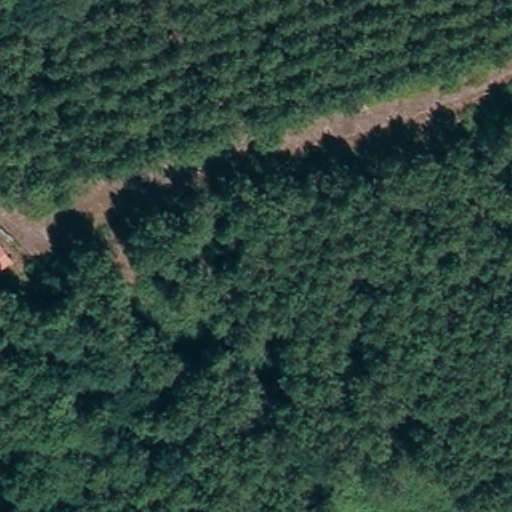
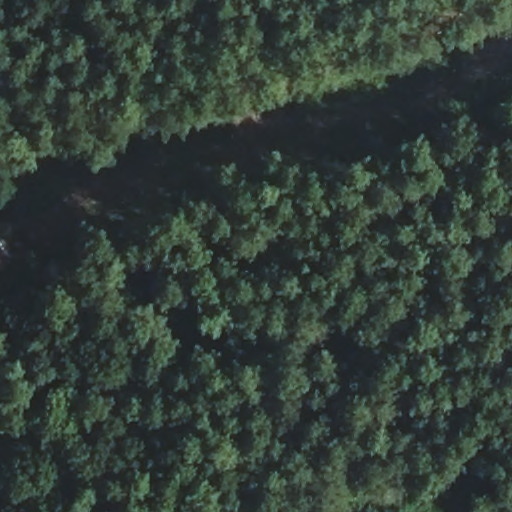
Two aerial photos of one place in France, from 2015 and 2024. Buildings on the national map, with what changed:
unchanged [(0,265),(0,249),(7,261),(0,265)]

